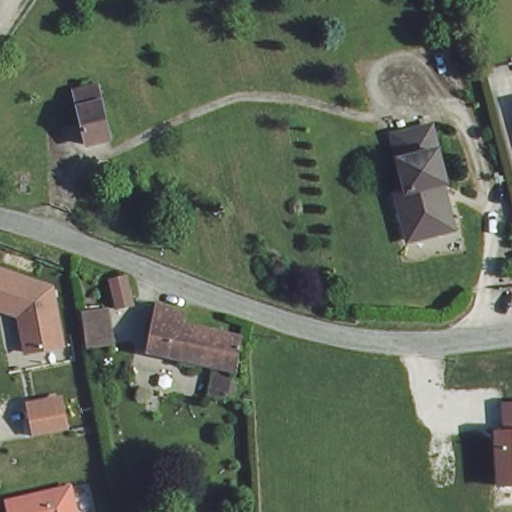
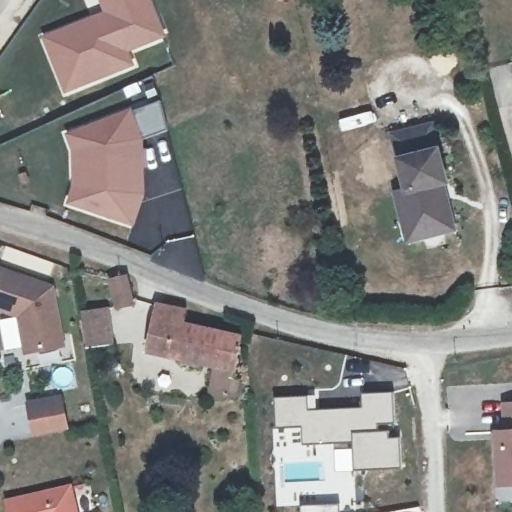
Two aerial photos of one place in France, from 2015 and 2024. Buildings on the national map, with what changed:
new [(41,37),(104,11),(99,0),(152,0),(166,35),(128,52),(135,65),(65,93),(41,37)]
demolished [(75,87),(102,81),(115,137),(88,147),(75,87)]
new [(71,204),(76,184),(75,150),(69,135),(161,100),(167,130),(138,140),(141,195),(131,222),(71,204)]
unchanged [(410,236),(399,192),(410,188),(397,134),(435,122),(449,176),(442,179),(454,222),(410,236)]
unchanged [(68,347),(27,354),(21,318),(0,311),(0,266),(57,286),(68,347)]
unchanged [(144,352),(155,301),(190,306),(189,318),(252,331),(237,373),(144,352)]
unchanged [(118,343),(87,349),(80,307),(113,304),(118,343)]
new [(211,369),(236,374),(234,385),(237,385),(235,399),(207,394),(211,369)]
new [(310,395),(312,409),(363,406),(361,393),(393,391),(395,426),(390,428),(351,432),(352,443),(339,445),(302,446),(300,427),(276,428),(274,397),(310,395)]
unchanged [(65,394),(72,430),(34,437),(27,402),(65,394)]
unchanged [(512,401),(512,486),(496,486),(494,431),(505,431),(502,402),(512,401)]
new [(339,447),(339,445),(352,443),(351,432),(390,428),(391,434),(400,434),(402,468),(336,472),(334,448),(339,447)]
unchanged [(81,512),(9,512),(7,501),(75,485),(81,512)]
new [(338,512),(300,512),(300,505),(337,503),(338,512)]

